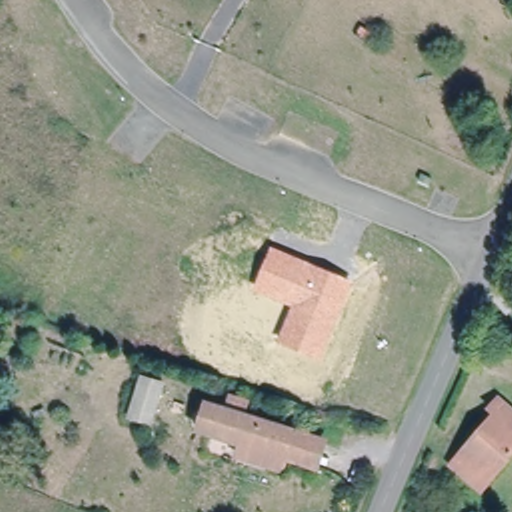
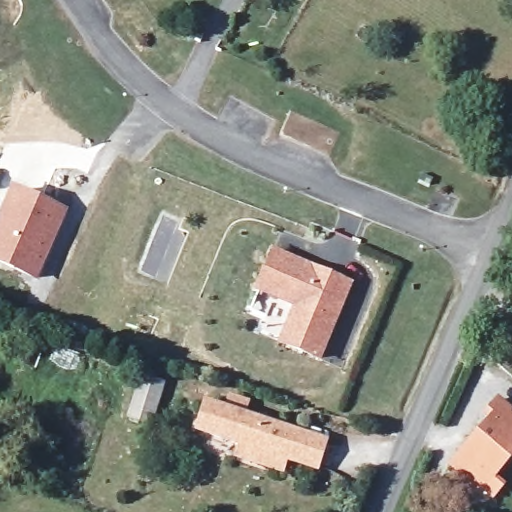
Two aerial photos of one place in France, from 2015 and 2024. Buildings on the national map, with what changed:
new [(70,208),(40,282),(0,266),(0,214),(12,185),(70,208)]
unchanged [(353,281),(321,359),(278,343),(293,307),(255,291),(272,247),(353,281)]
unchanged [(164,379),(151,418),(131,410),(143,373),(164,379)]
unchanged [(502,414),(512,425),(512,443),(477,484),(451,460),(491,410),(485,404),(496,391),(510,403),(502,414)]
unchanged [(263,461),(238,453),(242,442),(196,430),(204,399),(225,404),(227,397),(242,402),(240,410),(292,426),(323,434),(314,466),(296,459),(282,455),(279,467),(263,461)]

